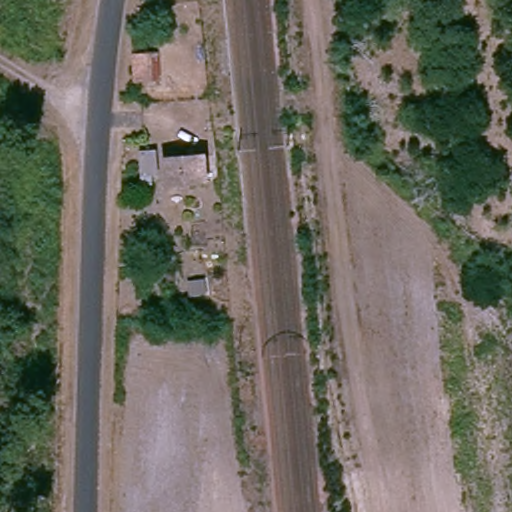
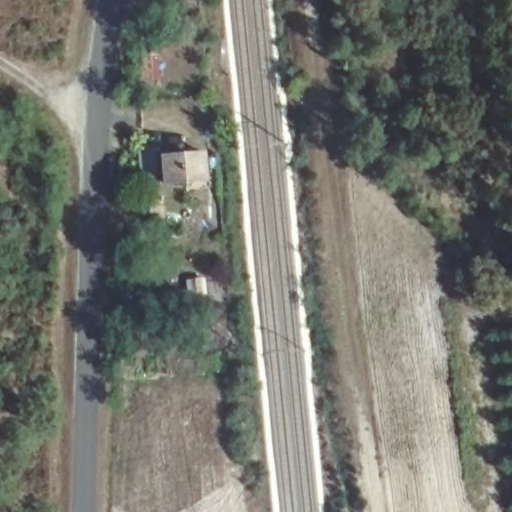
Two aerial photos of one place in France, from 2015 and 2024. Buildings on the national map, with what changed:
unchanged [(163,82),(135,83),(133,37),(160,35),(163,82)]
unchanged [(158,144),(158,152),(207,150),(210,182),(161,188),(160,175),(141,176),(138,147),(158,144)]

